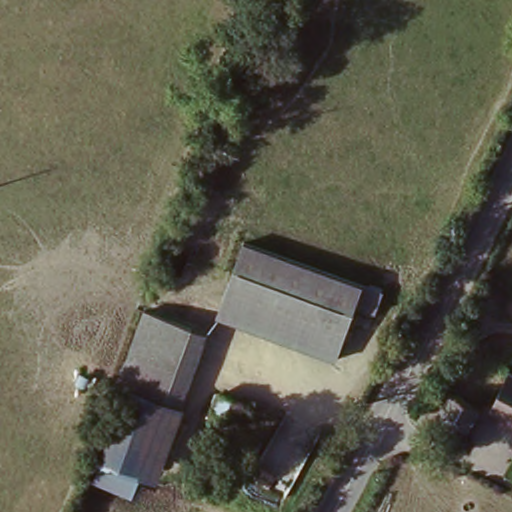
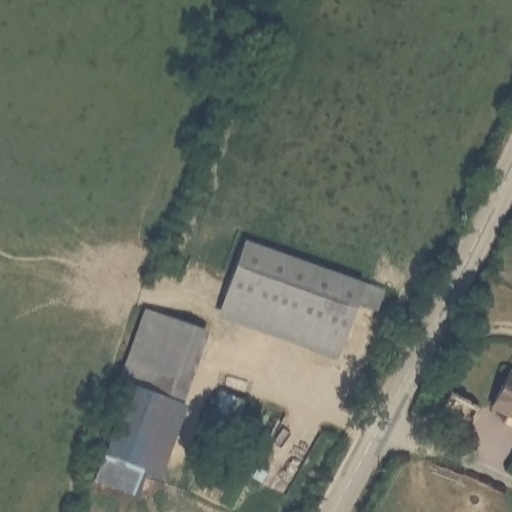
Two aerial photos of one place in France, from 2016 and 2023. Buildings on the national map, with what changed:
unchanged [(373,314),(357,309),(345,343),(220,300),(241,245),(379,295),(373,314)]
unchanged [(338,361),(215,317),(220,300),(345,343),(338,361)]
unchanged [(154,308),(212,336),(197,369),(137,344),(154,308)]
unchanged [(137,344),(197,369),(148,476),(89,449),(137,344)]
unchanged [(493,407),(508,373),(512,375),(512,415),(493,407)]
unchanged [(451,393),(484,410),(471,436),(438,420),(451,393)]
unchanged [(141,473),(131,495),(94,479),(101,455),(141,473)]

